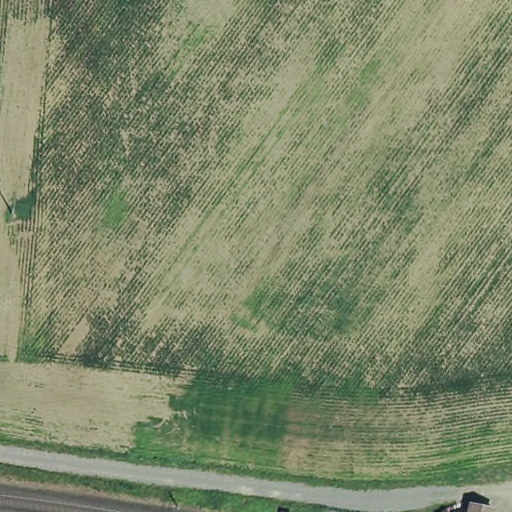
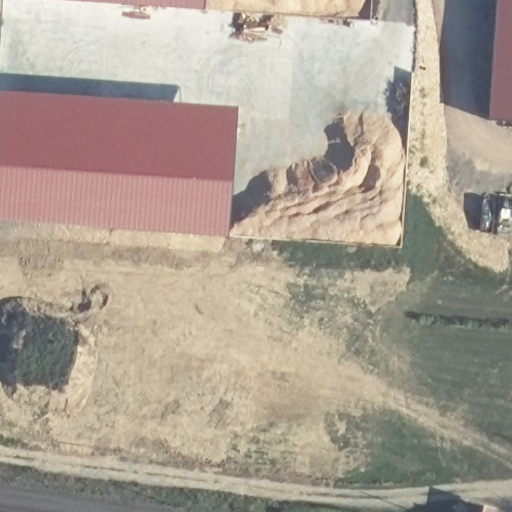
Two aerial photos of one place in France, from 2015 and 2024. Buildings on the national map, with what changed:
new [(202,16),(0,3),(0,0),(203,0),(202,16)]
new [(489,120),(496,0),(512,0),(512,121),(489,120)]
new [(228,237),(0,222),(0,89),(239,106),(228,237)]
unchanged [(497,510),(497,512),(475,512),(477,506),(497,510)]

